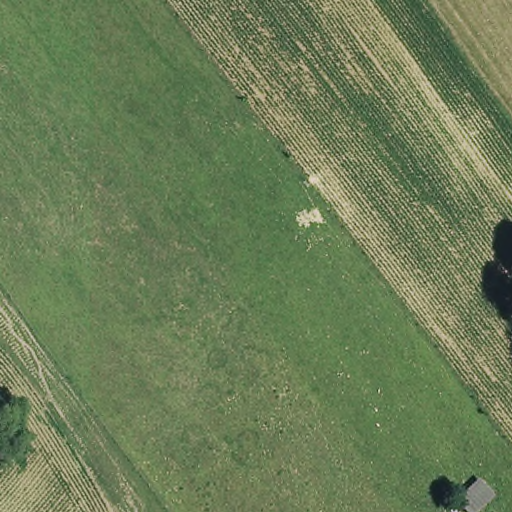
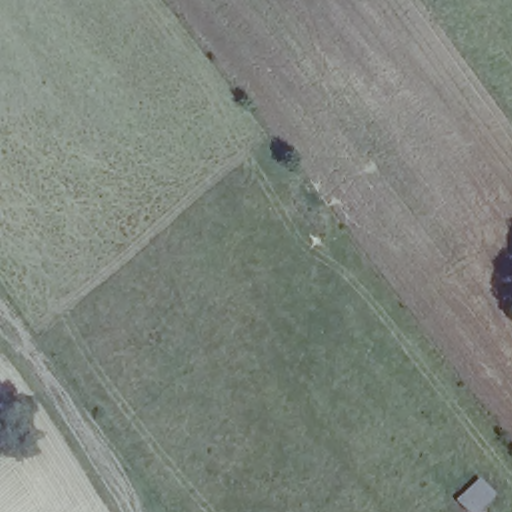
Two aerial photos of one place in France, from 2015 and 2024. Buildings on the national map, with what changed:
unchanged [(467,512),(454,498),(477,477),(494,495),(475,512),(467,512)]

